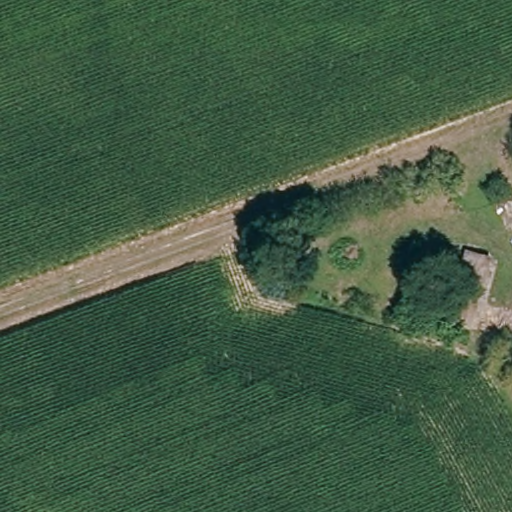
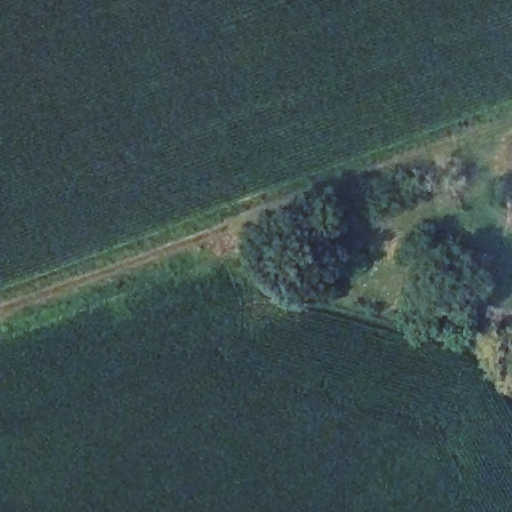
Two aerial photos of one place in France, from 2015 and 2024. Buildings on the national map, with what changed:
unchanged [(445,321),(469,247),(495,256),(475,330),(445,321)]

